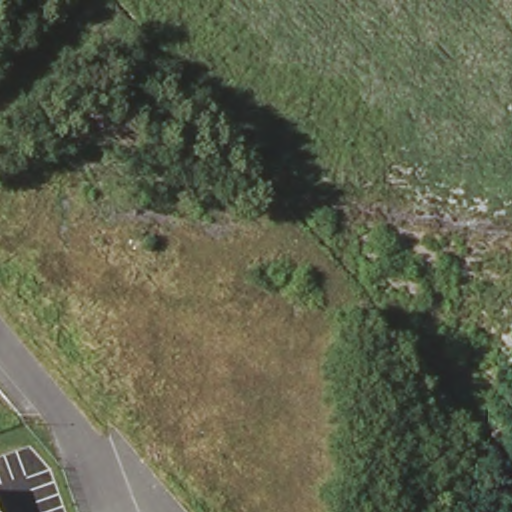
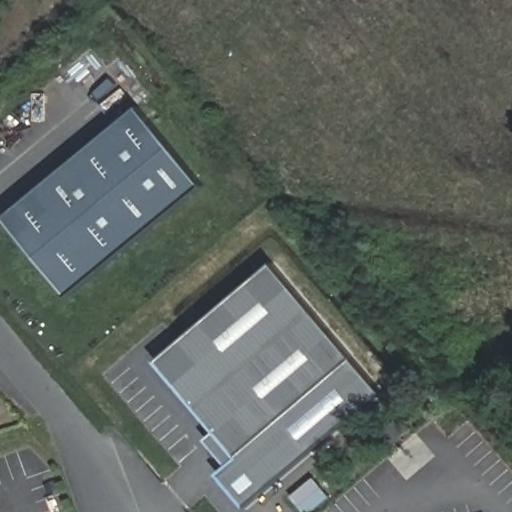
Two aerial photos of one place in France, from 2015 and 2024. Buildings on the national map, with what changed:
new [(68,298),(3,218),(138,107),(204,185),(68,298)]
new [(377,388),(246,510),(215,476),(228,465),(206,440),(216,432),(156,361),(273,263),(354,358),(377,388)]

